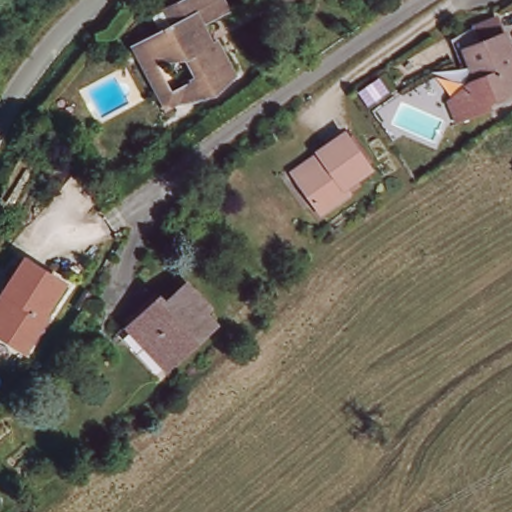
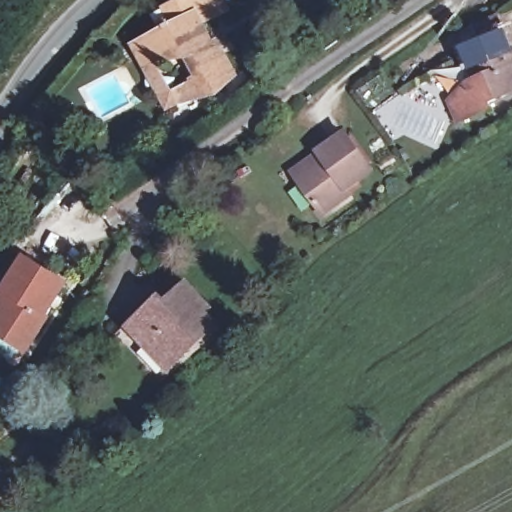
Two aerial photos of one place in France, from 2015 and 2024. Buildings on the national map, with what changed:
unchanged [(178,0),(200,0),(211,8),(191,29),(200,35),(195,40),(204,48),(213,39),(238,64),(228,87),(203,99),(191,87),(202,78),(183,64),(160,84),(142,66),(157,49),(142,33),(178,0)]
unchanged [(490,103),(458,115),(450,95),(470,79),(477,76),(466,44),(481,38),(475,22),(499,13),(505,30),(506,30),(512,45),(512,89),(488,98),(490,103)]
unchanged [(374,171),(348,189),(352,194),(324,213),(302,181),(296,171),(323,153),(350,135),(374,171)]
unchanged [(60,284),(41,315),(48,321),(26,352),(0,336),(0,320),(14,297),(5,292),(25,261),(60,284)]
unchanged [(160,298),(170,307),(192,287),(210,306),(202,312),(215,327),(170,364),(133,323),(160,298)]

